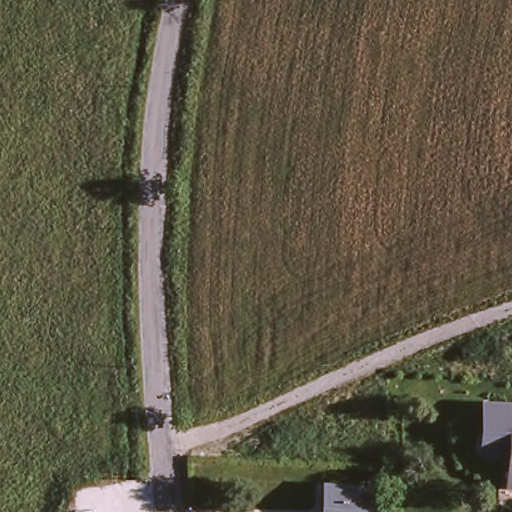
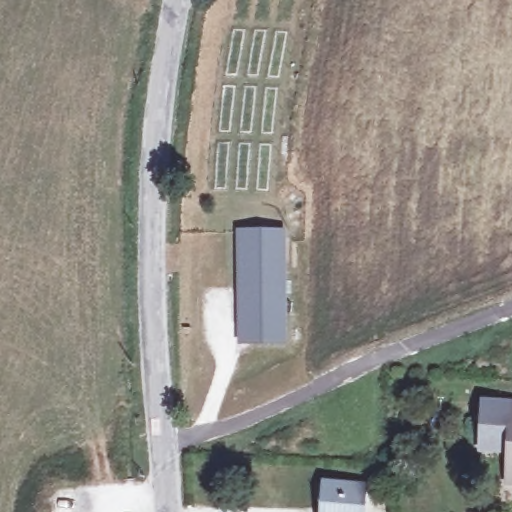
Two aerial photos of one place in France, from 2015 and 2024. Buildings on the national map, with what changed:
new [(237,230),(285,229),(287,344),(239,346),(237,230)]
unchanged [(511,453),(484,452),(486,406),(512,407),(512,485),(510,485),(511,453)]
unchanged [(367,512),(331,512),(333,488),(368,490),(367,512)]

